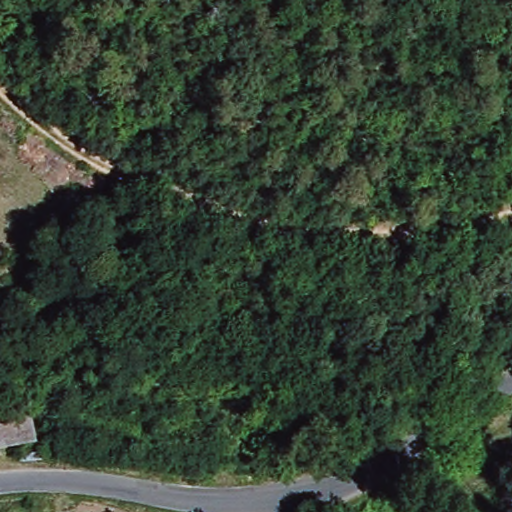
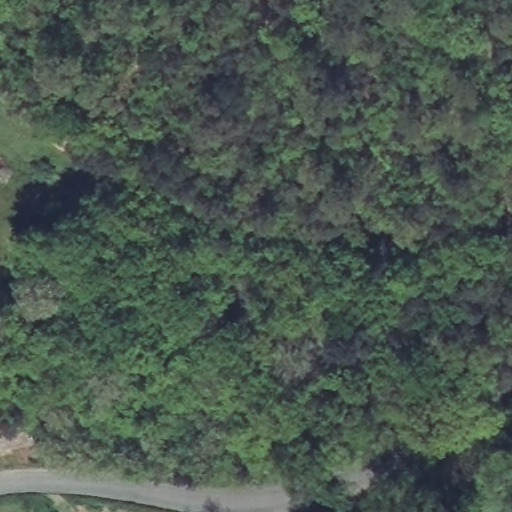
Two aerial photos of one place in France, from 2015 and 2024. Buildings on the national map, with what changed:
unchanged [(37,441),(0,453),(0,419),(28,411),(37,441)]

